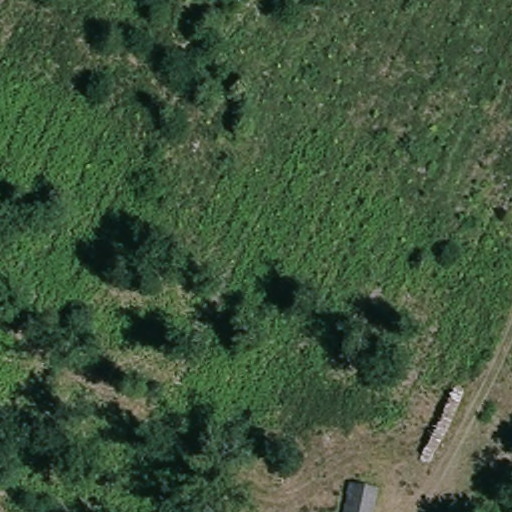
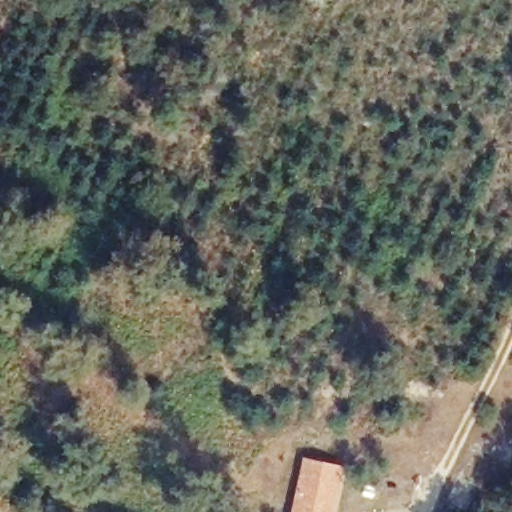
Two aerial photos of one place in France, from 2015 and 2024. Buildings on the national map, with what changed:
new [(302,456),(345,466),(335,512),(289,512),(302,456)]
unchanged [(375,512),(345,512),(352,482),(380,488),(375,512)]

